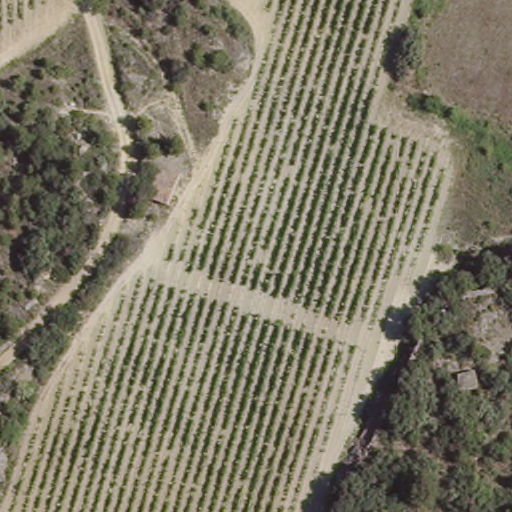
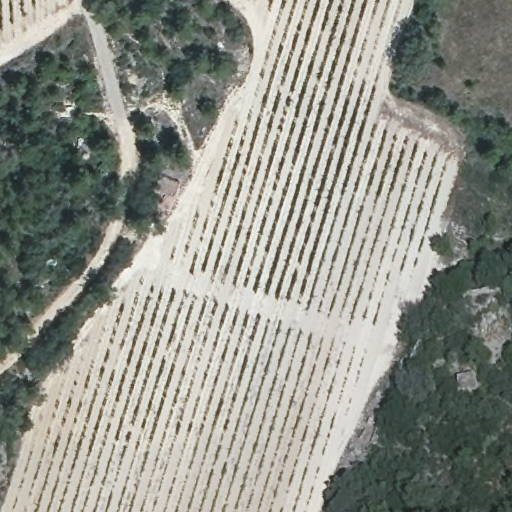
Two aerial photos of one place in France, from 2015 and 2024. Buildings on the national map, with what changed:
unchanged [(147,202),(159,172),(179,178),(169,210),(147,202)]

